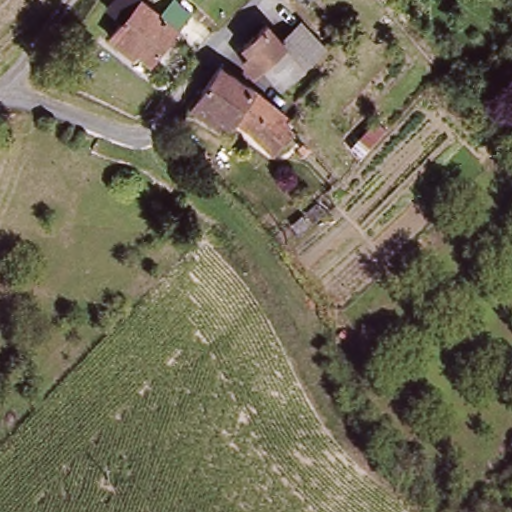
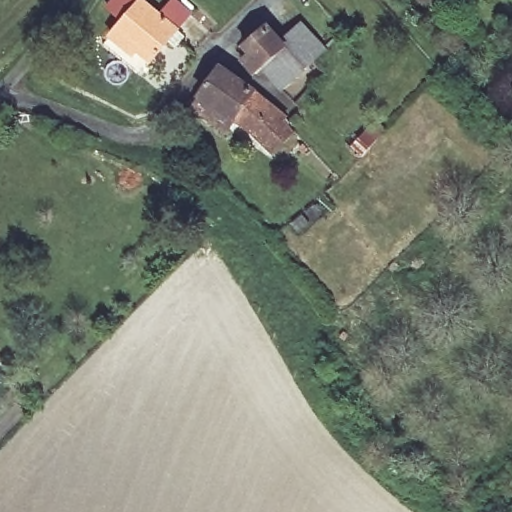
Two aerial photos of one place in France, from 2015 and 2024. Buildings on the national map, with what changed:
unchanged [(168,18),(179,1),(196,13),(184,31),(191,37),(183,48),(175,43),(159,66),(136,50),(134,55),(119,44),(130,27),(112,15),(123,0),(142,0),(168,18)]
unchanged [(265,29),(286,12),(305,33),(313,26),(335,6),(356,31),(325,59),(290,90),(272,69),(247,45),(265,29)]
unchanged [(229,69),(254,85),(297,128),(304,137),(302,143),(292,145),(284,153),(243,118),(234,128),(202,106),(225,73),(229,69)]
unchanged [(375,124),(384,132),(361,154),(353,147),(375,124)]

